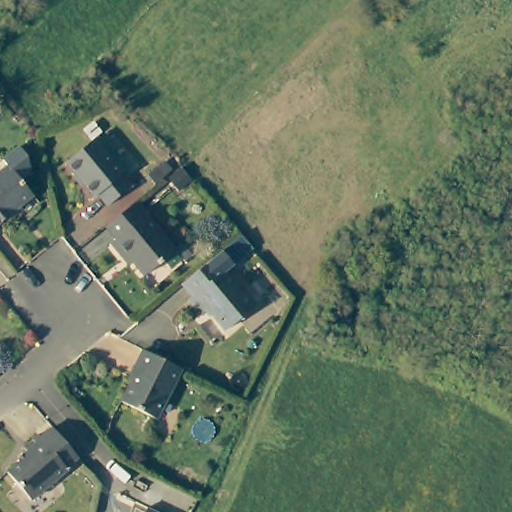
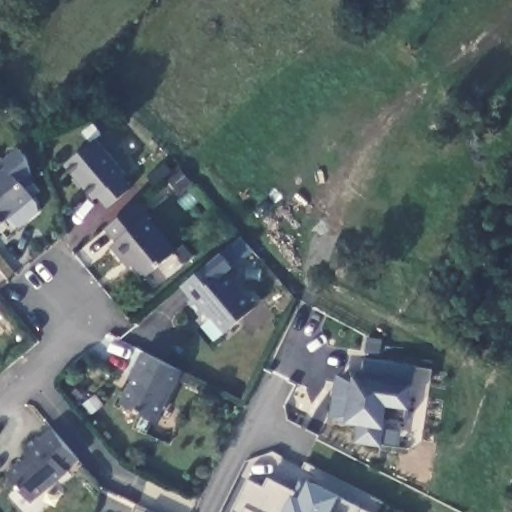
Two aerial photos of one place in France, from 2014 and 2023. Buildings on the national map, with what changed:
unchanged [(67,164),(97,139),(125,172),(121,174),(132,187),(109,207),(99,196),(96,198),(67,164)]
unchanged [(9,173),(34,203),(0,230),(0,180),(9,173)]
unchanged [(149,216),(148,217),(177,252),(146,277),(127,255),(124,259),(112,245),(117,240),(107,228),(133,206),(138,202),(149,216)]
unchanged [(233,249),(241,241),(242,241),(253,254),(235,269),(227,275),(257,311),(227,336),(209,315),(203,320),(190,305),(194,302),(183,290),(224,256),(233,249)]
unchanged [(157,421),(122,403),(139,369),(136,368),(144,352),(182,370),(157,421)]
new [(336,373),(353,374),(361,375),(364,356),(417,364),(414,383),(411,408),(408,408),(406,421),(388,417),(383,446),(355,442),(358,424),(347,423),(347,420),(330,420),(336,373)]
unchanged [(66,469),(67,471),(31,501),(7,472),(19,462),(18,460),(27,452),(24,448),(38,435),(40,438),(53,428),(78,459),(66,469)]
new [(249,479),(265,487),(270,477),(295,491),(300,480),(308,484),(311,479),(341,496),(372,512),(237,512),(234,510),(249,479)]

